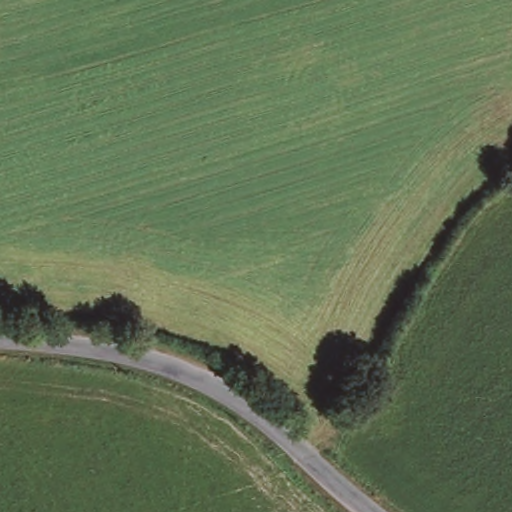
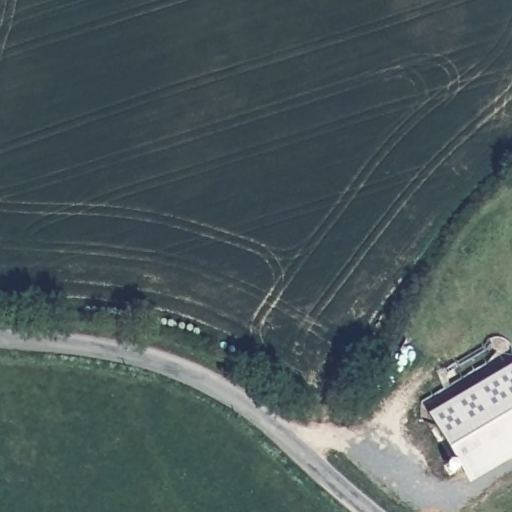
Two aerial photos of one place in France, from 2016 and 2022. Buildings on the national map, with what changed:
new [(425,414),(512,363),(512,458),(467,484),(425,414)]

